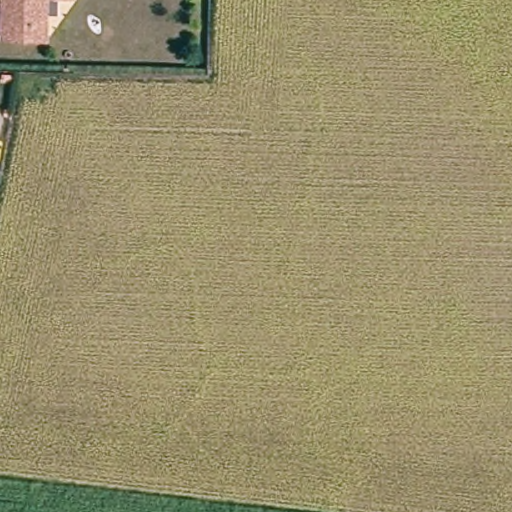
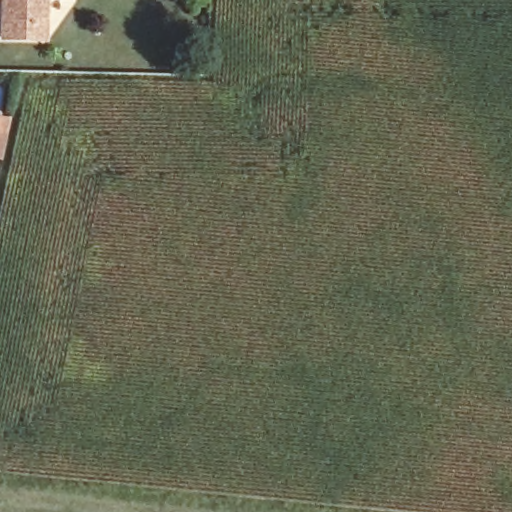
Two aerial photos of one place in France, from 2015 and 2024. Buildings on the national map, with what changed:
unchanged [(9,35),(9,19),(9,0),(52,0),(52,13),(51,36),(9,35)]

